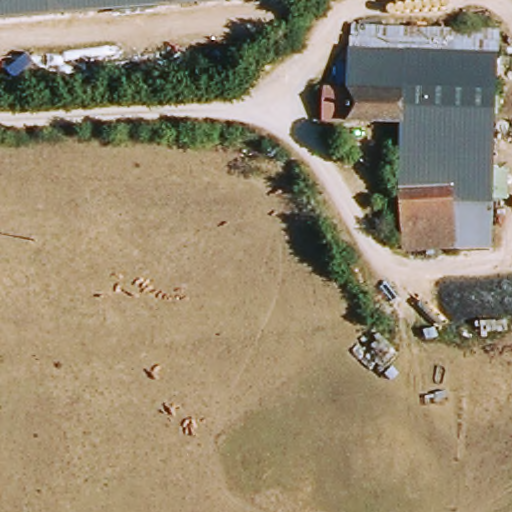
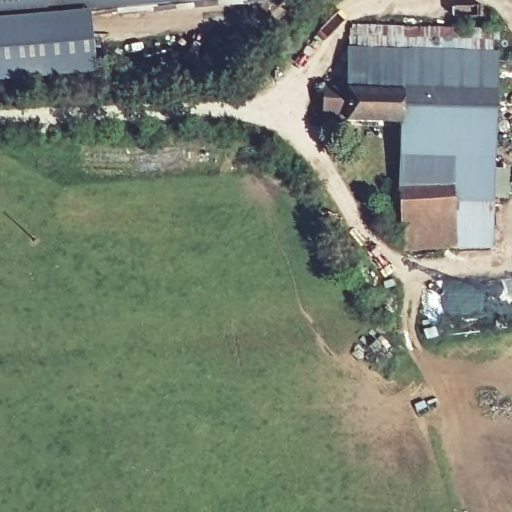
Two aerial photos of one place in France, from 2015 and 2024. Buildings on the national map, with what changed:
unchanged [(0,17),(0,0),(226,0),(0,17)]
new [(0,84),(0,17),(89,10),(95,75),(0,84)]
unchanged [(352,29),(499,29),(497,64),(350,64),(352,29)]
unchanged [(350,64),(497,64),(491,213),(452,214),(450,256),(404,255),(405,142),(326,142),(325,102),(349,102),(350,64)]
unchanged [(491,213),(490,257),(450,256),(452,214),(491,213)]

